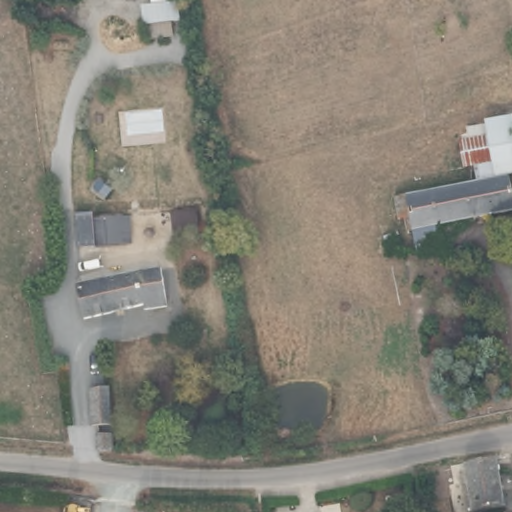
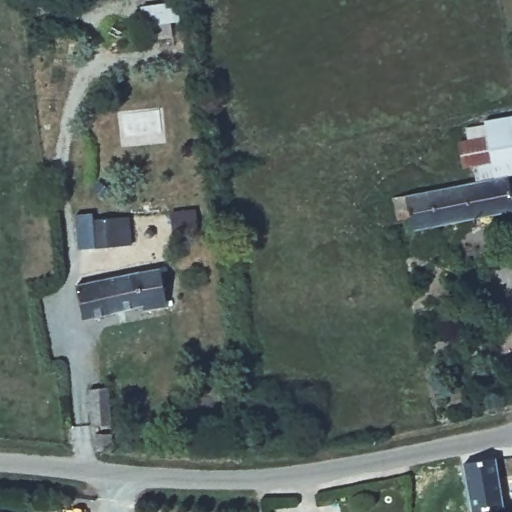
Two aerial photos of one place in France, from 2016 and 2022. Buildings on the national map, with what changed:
unchanged [(170,29),(147,31),(145,15),(168,14),(170,29)]
unchanged [(469,139),(466,124),(511,112),(512,119),(512,171),(501,173),(478,180),(475,166),(465,169),(459,141),(469,139)]
unchanged [(411,214),(406,215),(401,197),(432,190),(461,184),(478,180),(501,173),(512,171),(512,209),(467,218),(441,224),(446,243),(418,249),(411,214)]
unchanged [(109,217),(121,216),(124,244),(112,245),(97,246),(89,247),(86,220),(92,219),(109,217)]
unchanged [(97,279),(151,272),(157,314),(138,315),(137,308),(102,313),(76,316),(72,282),(97,279)]
unchanged [(97,427),(89,391),(109,389),(112,405),(115,424),(97,427)]
unchanged [(101,450),(100,441),(100,438),(117,439),(121,453),(101,450)]
unchanged [(491,512),(472,512),(462,465),(495,459),(504,510),(491,512)]

